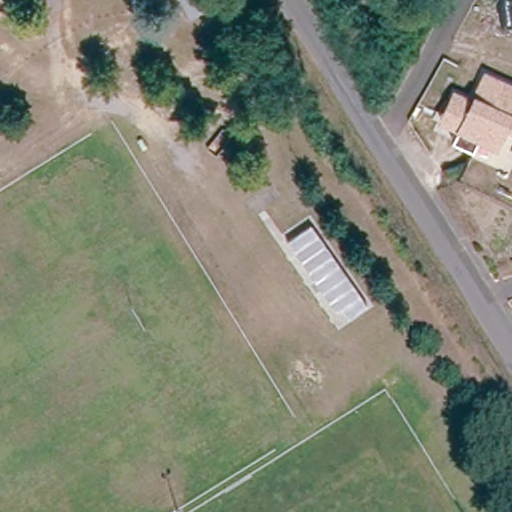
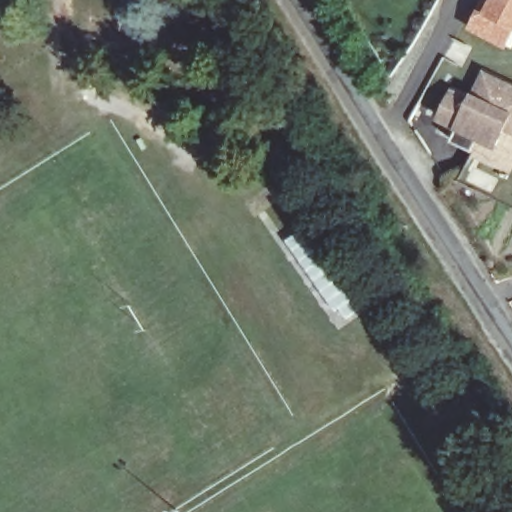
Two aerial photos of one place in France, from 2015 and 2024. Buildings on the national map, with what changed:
unchanged [(178,0),(214,0),(191,16),(178,0)]
new [(512,0),(512,28),(481,9),(487,0),(512,0)]
new [(477,8),(481,9),(512,28),(512,40),(507,49),(467,29),(477,8)]
unchanged [(507,132),(498,151),(477,142),(472,151),(451,141),(456,130),(436,119),(455,84),(473,94),(485,69),(512,83),(512,134),(507,132)]
unchanged [(367,303),(347,318),(339,308),(335,310),(285,242),(309,224),(367,303)]

